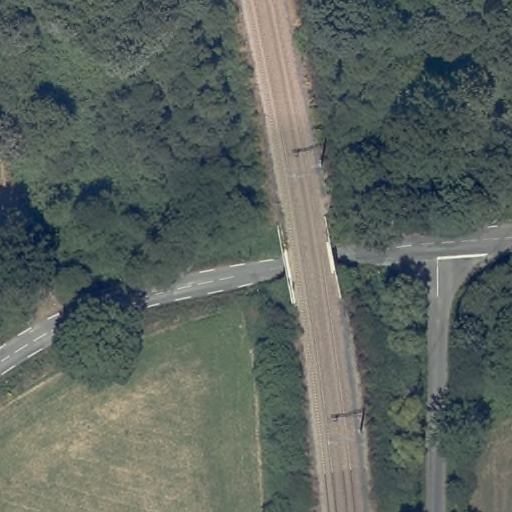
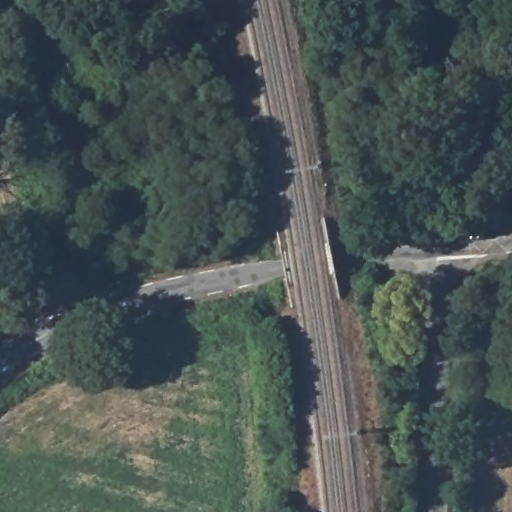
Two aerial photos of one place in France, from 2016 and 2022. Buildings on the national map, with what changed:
unchanged [(396,407),(397,419),(383,420),(382,408),(396,407)]

